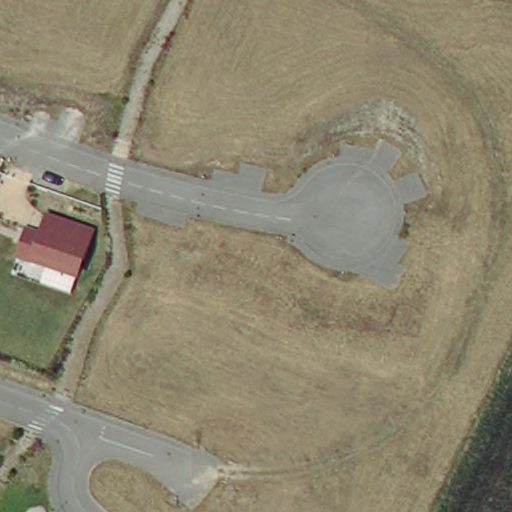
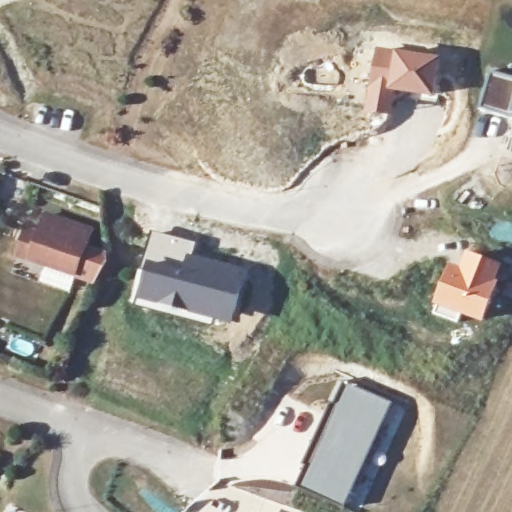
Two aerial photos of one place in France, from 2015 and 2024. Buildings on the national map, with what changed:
new [(374,46),(441,56),(435,97),(397,92),(392,115),(364,112),(374,46)]
new [(493,75),(512,80),(512,119),(483,108),(493,75)]
unchanged [(95,229),(77,276),(33,261),(17,256),(29,226),(40,229),(49,210),(95,229)]
new [(154,231),(198,242),(195,255),(250,269),(235,325),(176,314),(131,302),(154,231)]
new [(452,262),(461,265),(467,250),(502,264),(484,323),(462,315),(459,324),(433,314),(452,262)]
new [(330,412),(345,380),(394,401),(346,507),(299,487),(330,412)]
new [(255,510),(259,512),(254,512),(255,510)]

